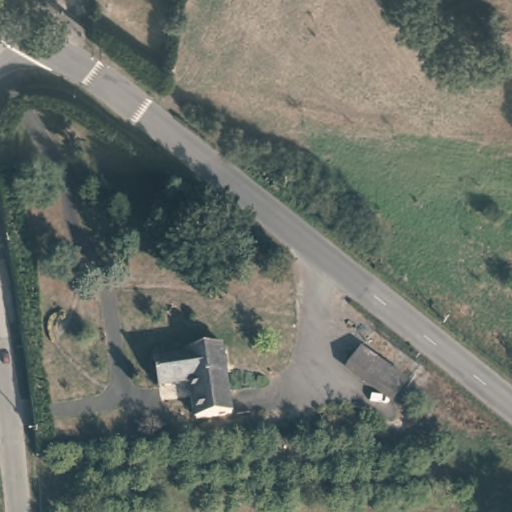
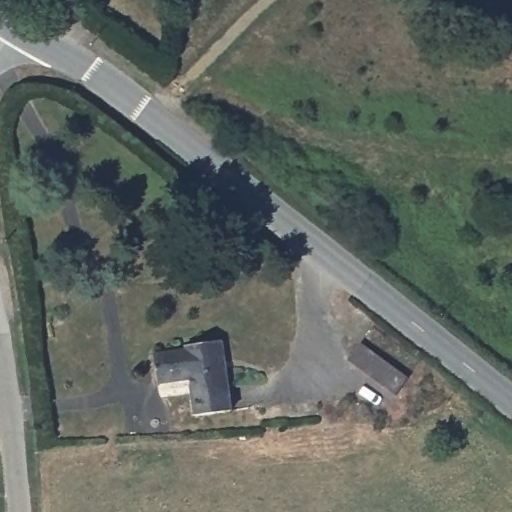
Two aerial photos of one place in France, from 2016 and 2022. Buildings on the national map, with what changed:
unchanged [(160,352),(187,349),(190,342),(226,339),(234,410),(198,413),(195,378),(162,382),(160,352)]
unchanged [(400,392),(355,359),(367,340),(413,373),(400,392)]

